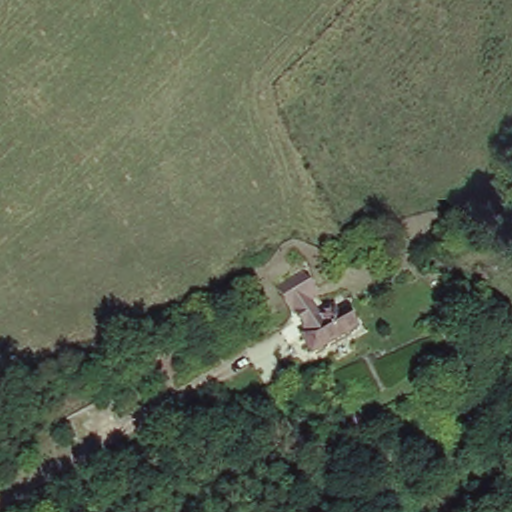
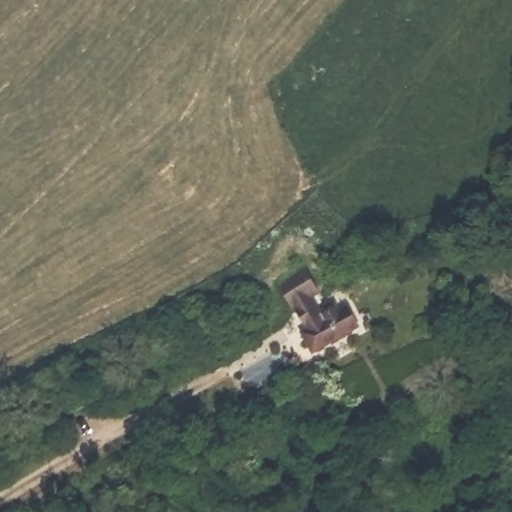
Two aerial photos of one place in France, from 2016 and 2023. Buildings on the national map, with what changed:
unchanged [(343,307),(354,329),(309,350),(300,330),(343,307)]

